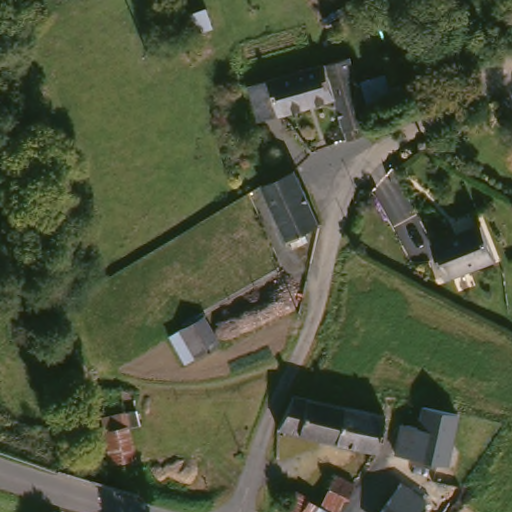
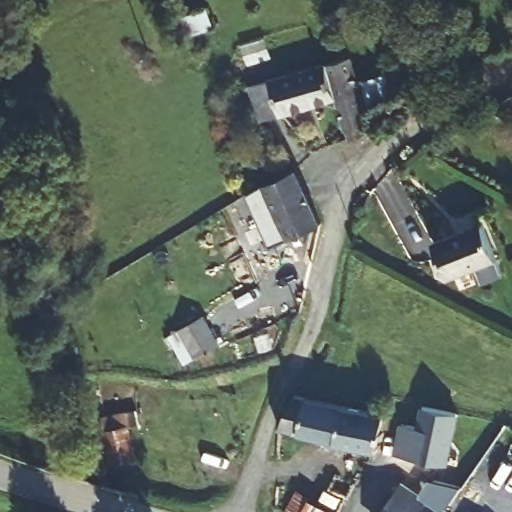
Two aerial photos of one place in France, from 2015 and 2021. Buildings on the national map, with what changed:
unchanged [(362,125),(364,135),(348,141),(342,116),(336,99),(282,115),(261,121),(250,85),(351,59),(357,80),(367,114),(370,122),(362,125)]
unchanged [(357,80),(392,69),(402,104),(367,114),(357,80)]
unchanged [(294,248),(290,239),(288,240),(263,185),(295,170),(321,225),(302,234),(306,243),(294,248)]
unchanged [(446,278),(432,243),(482,224),(496,258),(446,278)]
unchanged [(185,364),(169,336),(203,317),(219,344),(185,364)]
unchanged [(302,434),(283,429),(299,397),(348,406),(338,442),(302,434)]
unchanged [(338,442),(348,406),(384,412),(382,452),(338,442)]
unchanged [(457,414),(452,442),(446,445),(442,464),(396,455),(402,424),(418,428),(423,407),(457,414)]
unchanged [(101,418),(127,412),(137,459),(112,465),(101,418)]
unchanged [(288,512),(298,495),(316,505),(336,476),(356,487),(342,512),(288,512)]
unchanged [(399,489),(427,508),(423,512),(384,512),(393,498),(399,489)]

